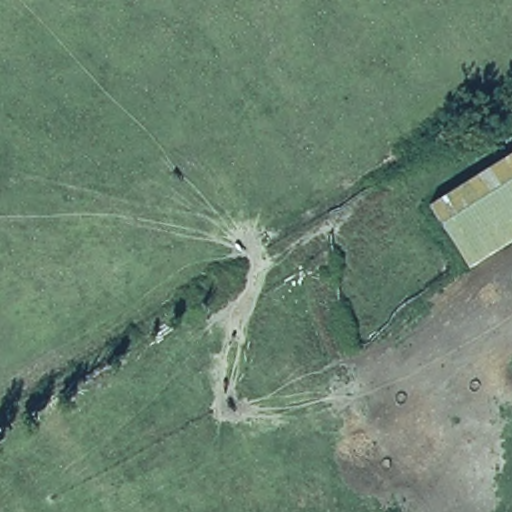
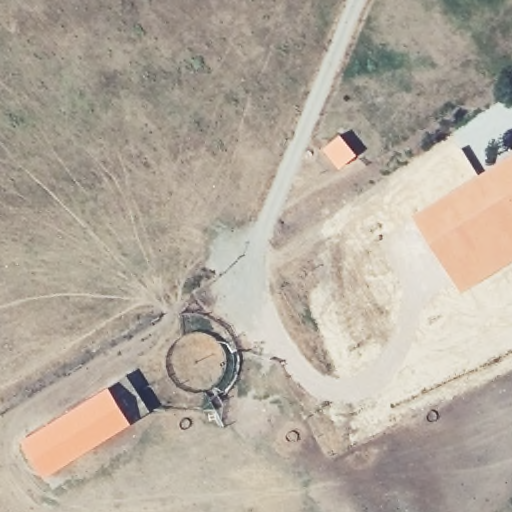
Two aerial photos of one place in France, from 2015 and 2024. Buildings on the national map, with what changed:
unchanged [(459,272),(420,209),(512,152),(512,239),(459,272)]
new [(109,384),(131,420),(46,474),(23,438),(109,384)]

